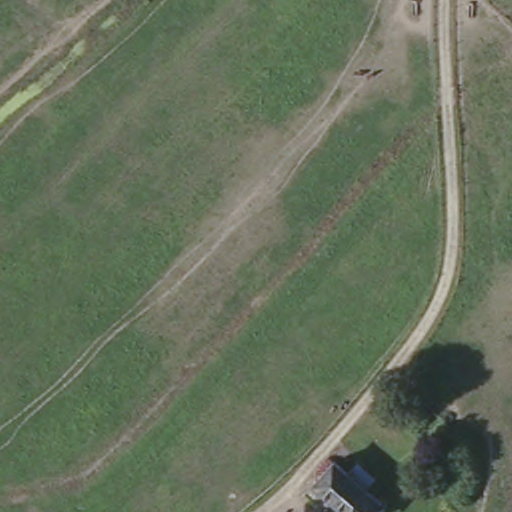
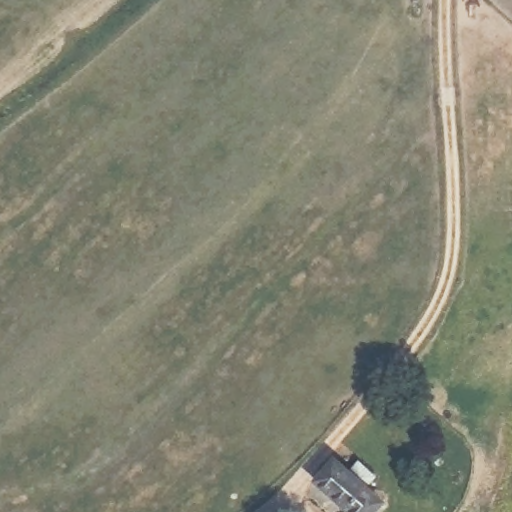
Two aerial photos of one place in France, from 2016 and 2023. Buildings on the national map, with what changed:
unchanged [(329,460),(340,468),(351,457),(372,474),(362,483),(378,497),(366,512),(348,512),(312,482),(329,460)]

